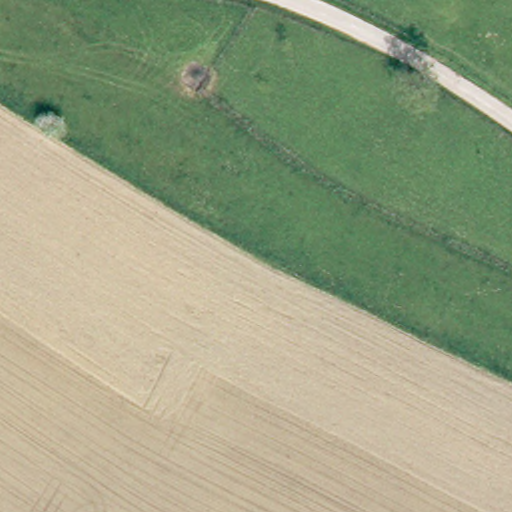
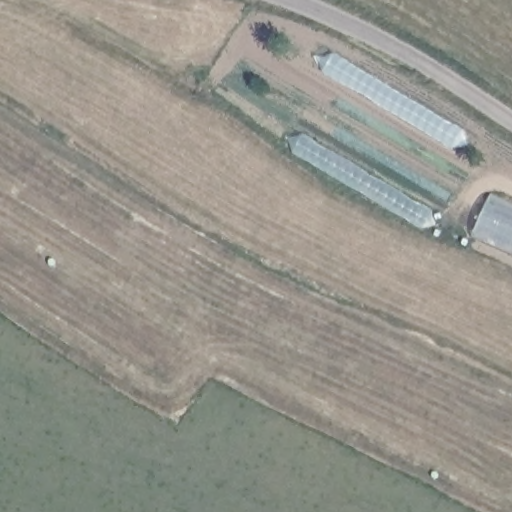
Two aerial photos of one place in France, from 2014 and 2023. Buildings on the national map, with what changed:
new [(489,193),(512,203),(512,256),(468,236),(489,193)]

